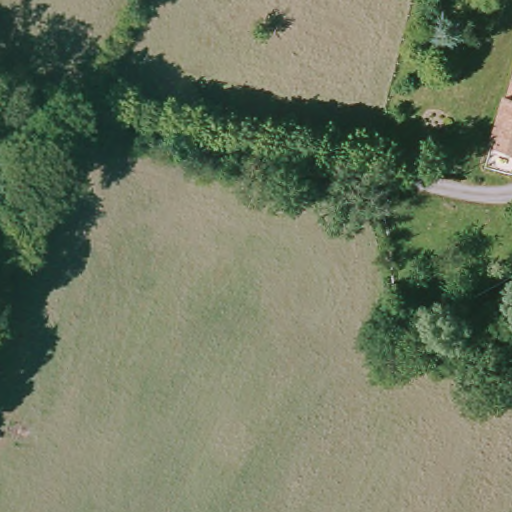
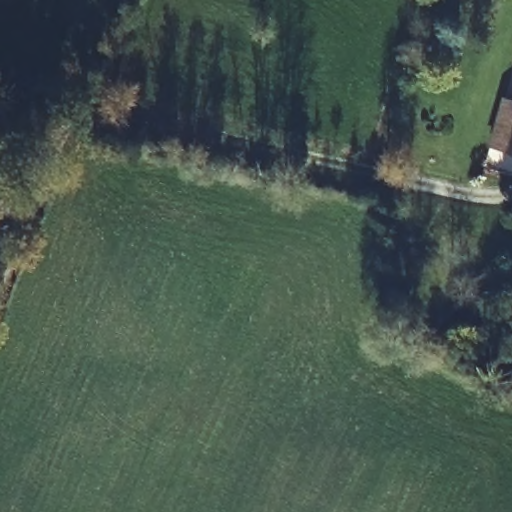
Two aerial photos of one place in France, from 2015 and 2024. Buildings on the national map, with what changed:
unchanged [(512,127),(512,152),(505,150),(512,127)]

